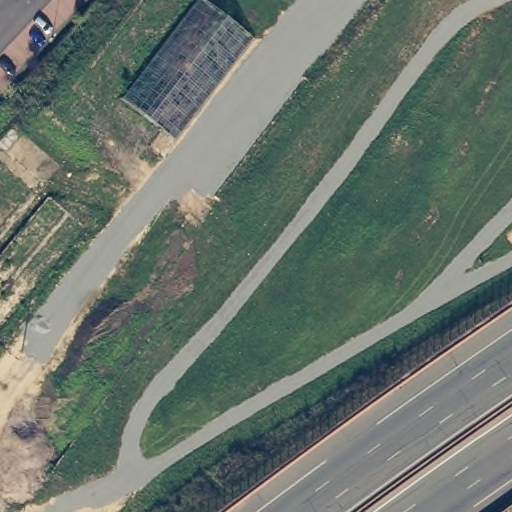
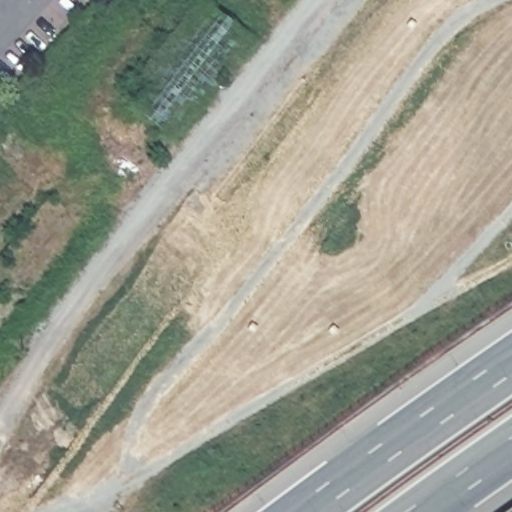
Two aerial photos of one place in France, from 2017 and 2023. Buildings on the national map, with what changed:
unchanged [(121,94),(193,0),(212,0),(255,34),(177,136),(121,94)]

